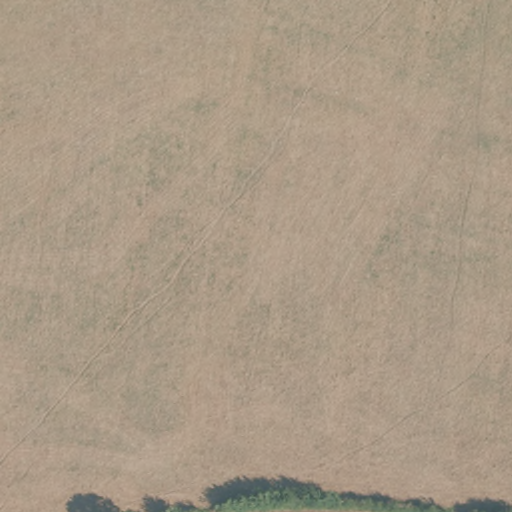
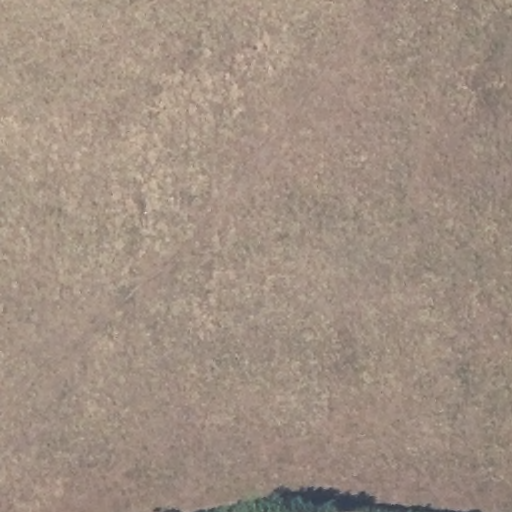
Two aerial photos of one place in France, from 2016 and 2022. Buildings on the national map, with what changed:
[]

